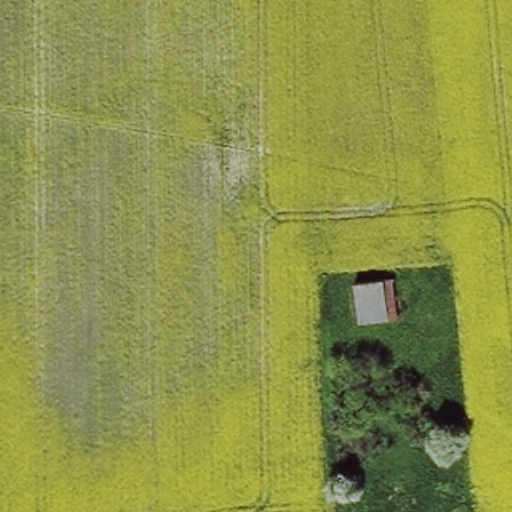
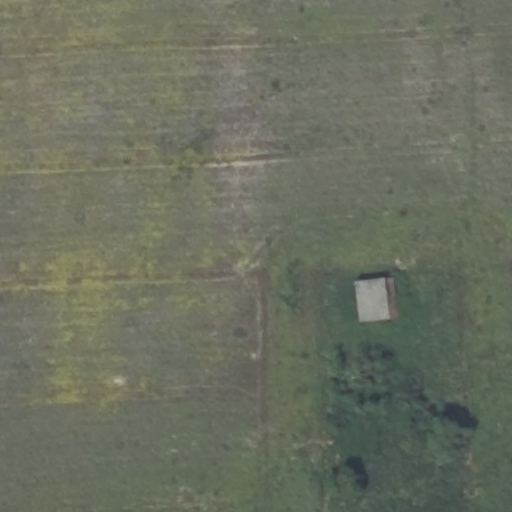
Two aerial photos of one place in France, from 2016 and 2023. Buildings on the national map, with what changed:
unchanged [(352,280),(378,278),(392,277),(398,318),(385,319),(358,321),(352,280)]

